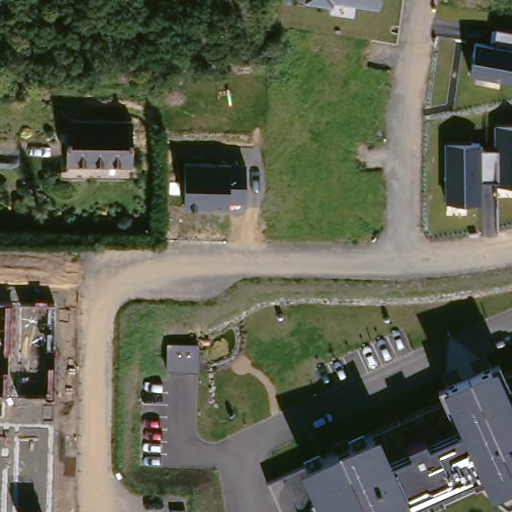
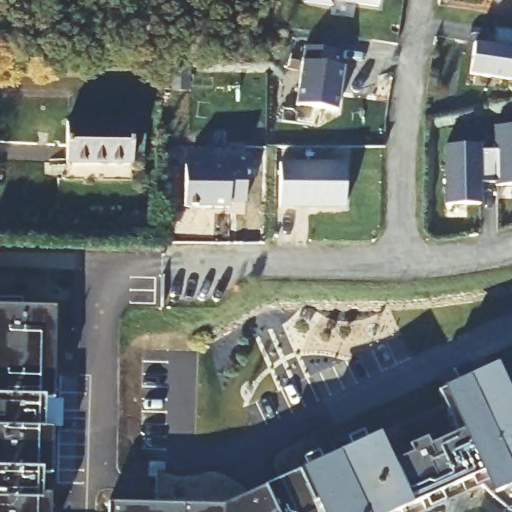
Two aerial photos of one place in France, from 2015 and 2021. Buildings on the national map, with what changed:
unchanged [(305,0),(379,0),(378,8),(332,1),(331,6),(304,1),(305,0)]
unchanged [(474,41),(493,44),(495,29),(512,31),(512,82),(469,74),(474,41)]
new [(305,47),(336,52),(334,67),(344,68),(337,112),(297,106),(305,47)]
unchanged [(61,166),(61,124),(126,124),(124,167),(61,166)]
unchanged [(496,183),(481,183),(481,205),(444,205),(444,144),(481,144),(481,150),(494,149),(493,125),(512,125),(512,185),(496,185),(496,183)]
new [(280,163),(344,164),(343,210),(280,209),(280,163)]
unchanged [(184,164),(231,164),(246,164),(245,203),(228,199),(228,209),(184,208),(184,164)]
unchanged [(56,307),(53,429),(51,512),(0,512),(0,307),(56,307)]
unchanged [(197,374),(167,373),(167,347),(198,348),(197,374)]
unchanged [(486,494),(480,485),(474,487),(421,512),(318,512),(316,509),(312,512),(295,512),(282,479),(299,471),(378,436),(443,406),(438,393),(443,389),(495,365),(498,364),(505,379),(512,376),(512,512),(510,512),(501,506),(486,494)]

